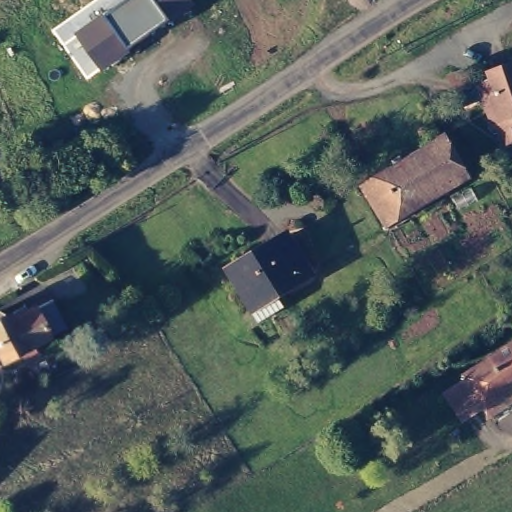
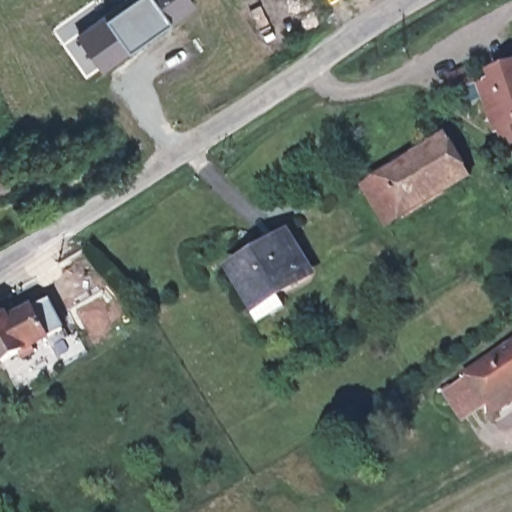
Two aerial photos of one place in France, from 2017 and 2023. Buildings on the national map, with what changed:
unchanged [(186,0),(190,6),(101,71),(79,37),(132,0),(186,0)]
unchanged [(512,65),(512,126),(510,127),(497,99),(504,95),(496,71),(512,65)]
unchanged [(450,135),(472,174),(395,223),(371,188),(417,158),(444,141),(443,140),(450,135)]
unchanged [(289,228),(307,265),(277,282),(284,295),(259,310),(252,298),(256,294),(236,258),(289,228)]
unchanged [(4,312),(6,314),(8,320),(48,298),(62,325),(39,339),(43,346),(29,353),(22,348),(4,358),(0,352),(0,311),(1,311),(4,312)]
unchanged [(460,380),(475,371),(512,344),(512,392),(498,402),(492,396),(479,407),(460,380)]

